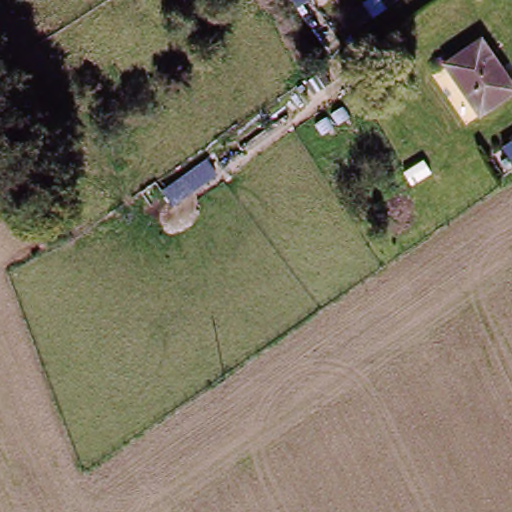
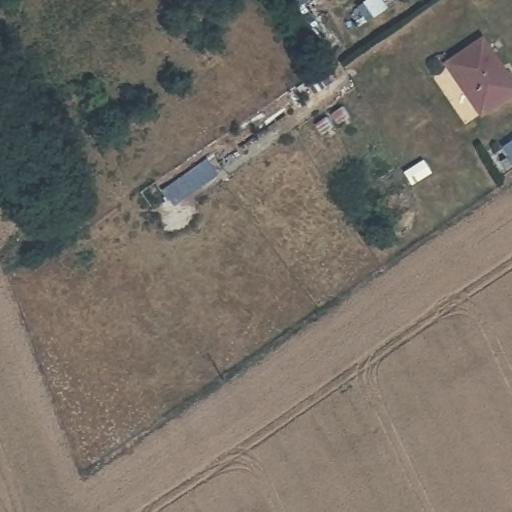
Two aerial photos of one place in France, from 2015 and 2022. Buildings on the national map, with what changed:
unchanged [(297,9),(291,0),(311,0),(297,9)]
unchanged [(512,88),(512,98),(486,119),(452,71),(485,47),(512,88)]
unchanged [(505,151),(512,146),(512,164),(505,151)]

